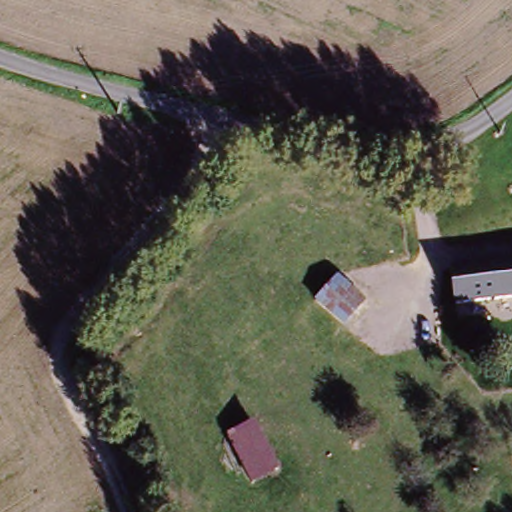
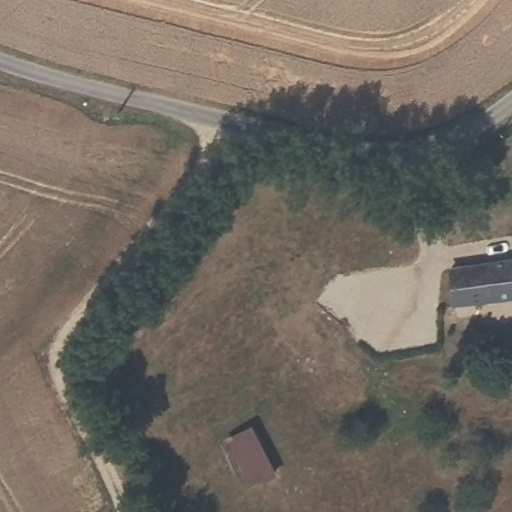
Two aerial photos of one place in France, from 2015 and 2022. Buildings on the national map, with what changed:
unchanged [(457,307),(454,275),(512,266),(512,298),(457,307)]
unchanged [(254,492),(227,447),(255,432),(280,476),(254,492)]

